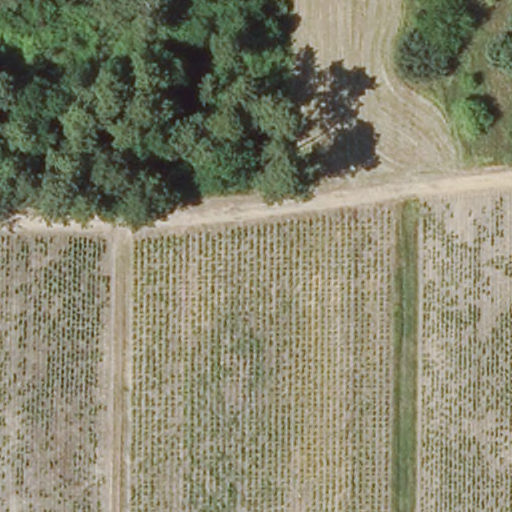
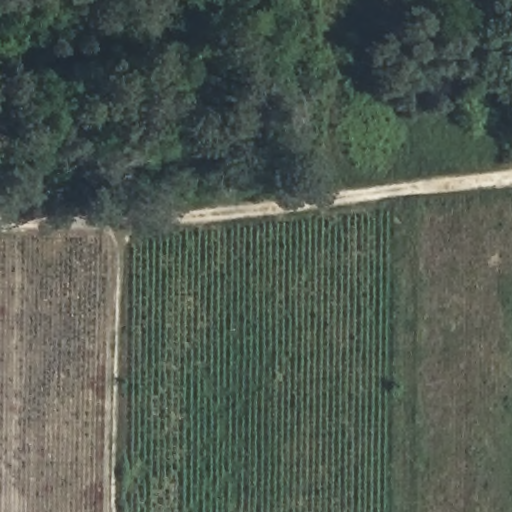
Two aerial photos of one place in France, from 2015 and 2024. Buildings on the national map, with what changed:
[]

